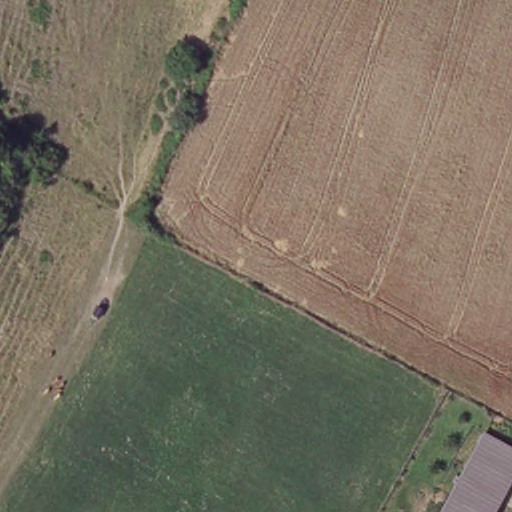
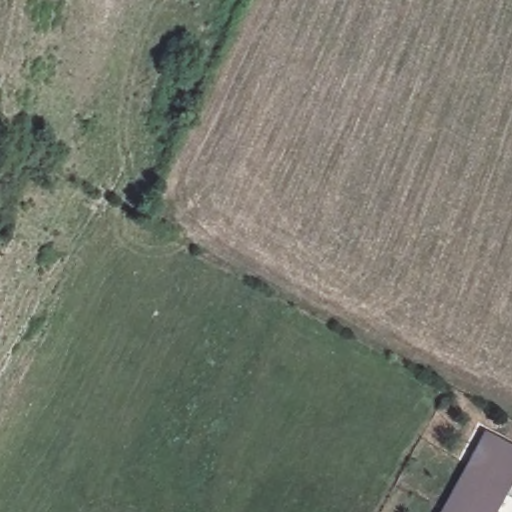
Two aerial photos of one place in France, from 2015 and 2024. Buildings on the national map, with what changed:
unchanged [(464,478),(488,433),(512,446),(512,485),(498,512),(448,512),(464,479),(464,478)]

